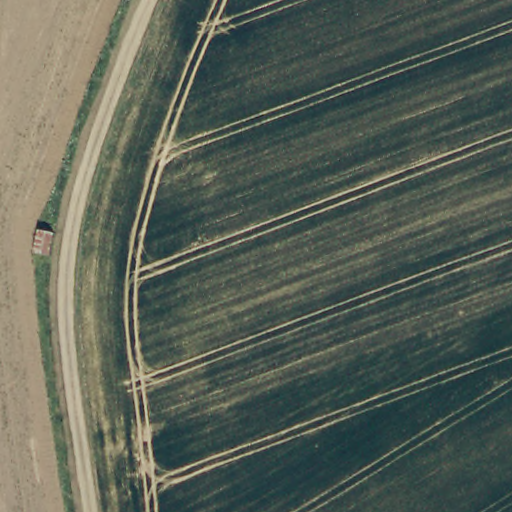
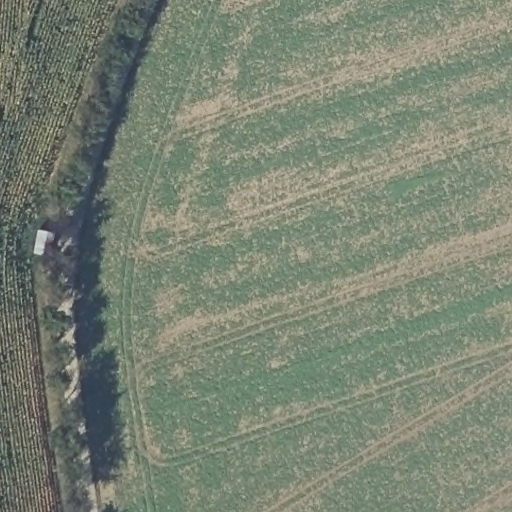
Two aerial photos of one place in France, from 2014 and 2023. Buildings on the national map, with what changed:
unchanged [(51,257),(33,256),(35,231),(53,233),(51,257)]

